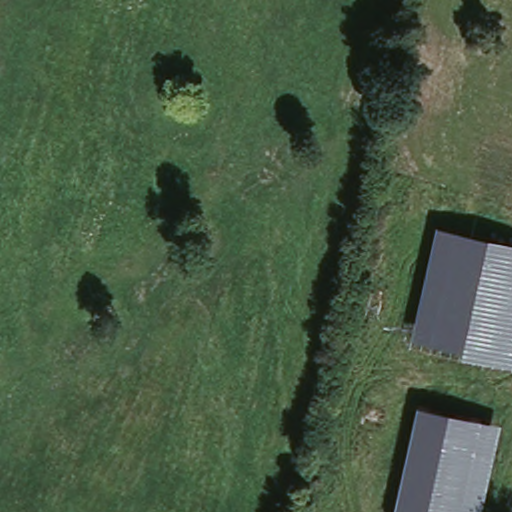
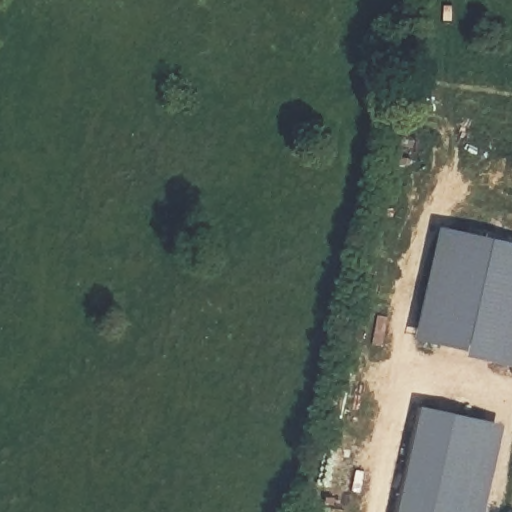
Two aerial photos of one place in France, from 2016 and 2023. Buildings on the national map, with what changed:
unchanged [(436,226),(512,242),(512,367),(410,345),(436,226)]
unchanged [(417,406),(502,423),(482,512),(394,512),(417,406)]

